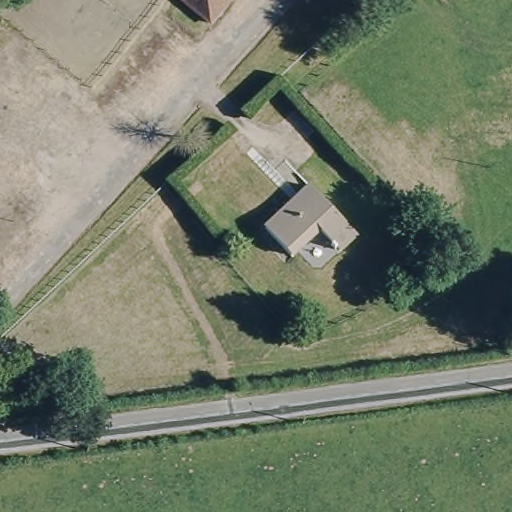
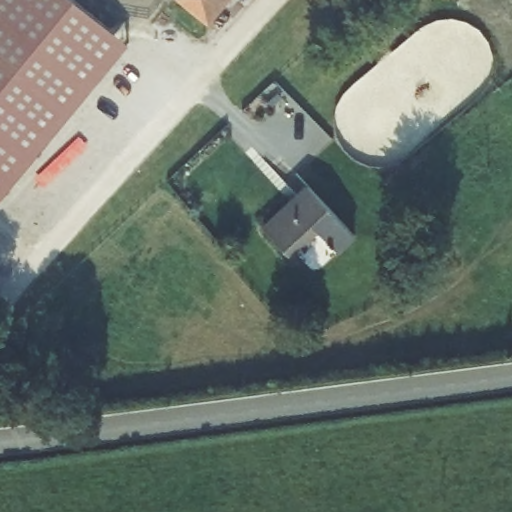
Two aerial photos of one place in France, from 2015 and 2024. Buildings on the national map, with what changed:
new [(0,203),(0,0),(77,0),(130,44),(0,203)]
unchanged [(175,0),(227,0),(205,25),(175,0)]
unchanged [(357,238),(340,254),(318,232),(292,256),(264,227),(308,186),(357,238)]

